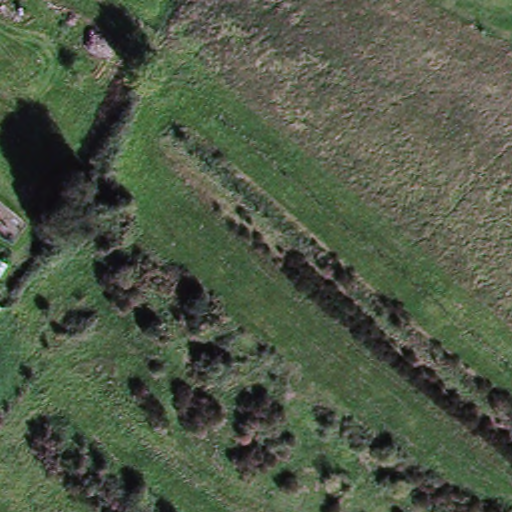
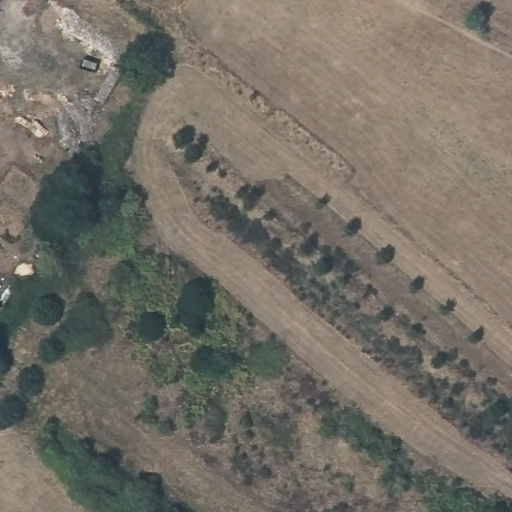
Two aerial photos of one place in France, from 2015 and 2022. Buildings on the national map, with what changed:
[]

